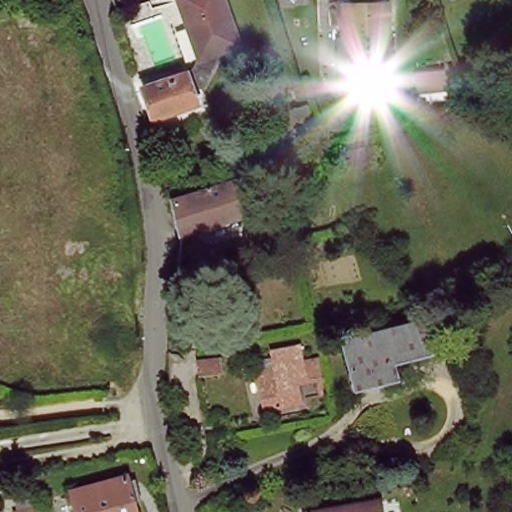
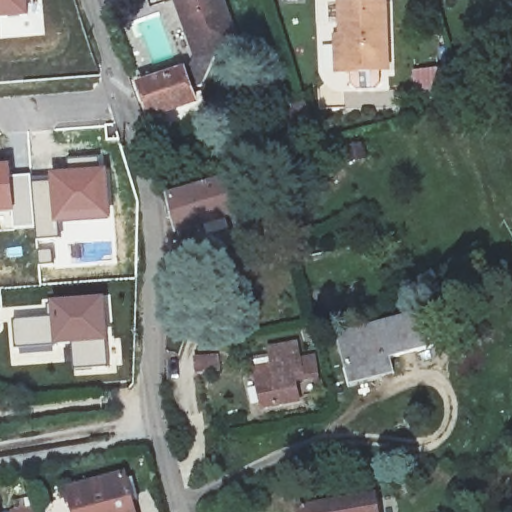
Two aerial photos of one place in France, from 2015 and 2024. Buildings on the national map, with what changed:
new [(31,17),(0,20),(0,0),(29,0),(31,17)]
unchanged [(185,64),(141,77),(139,71),(183,59),(166,1),(169,0),(182,0),(199,60),(185,64)]
unchanged [(240,47),(199,60),(182,0),(226,0),(240,47)]
unchanged [(345,6),(388,8),(386,77),(343,77),(345,6)]
unchanged [(141,77),(185,64),(196,95),(152,109),(141,77)]
unchanged [(284,116),(305,110),(315,140),(293,146),(284,116)]
new [(12,164),(13,175),(13,215),(0,216),(0,165),(12,164)]
new [(108,168),(112,220),(57,225),(50,180),(49,175),(108,168)]
new [(13,175),(32,174),(33,181),(35,229),(13,230),(13,215),(13,175)]
new [(50,180),(57,225),(59,239),(36,240),(35,229),(33,181),(50,180)]
unchanged [(246,211),(172,232),(163,200),(238,180),(246,211)]
new [(75,370),(73,345),(55,347),(50,315),(49,301),(108,295),(109,342),(110,368),(75,370)]
new [(50,315),(55,347),(18,351),(16,317),(50,315)]
unchanged [(338,337),(416,321),(423,352),(385,360),(387,374),(348,382),(338,337)]
unchanged [(308,404),(261,411),(259,400),(253,362),(314,350),(319,370),(296,374),(300,391),(304,390),(308,404)]
unchanged [(198,361),(217,358),(219,372),(200,376),(198,361)]
unchanged [(116,482),(124,512),(83,512),(79,492),(116,482)]
unchanged [(363,496),(365,512),(281,512),(342,501),(363,496)]
unchanged [(39,512),(16,512),(38,508),(39,512)]

